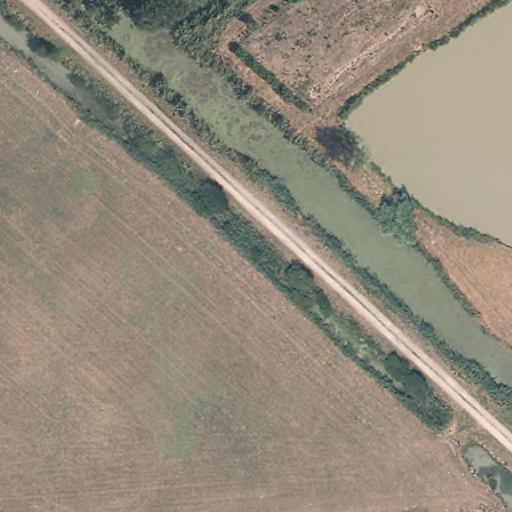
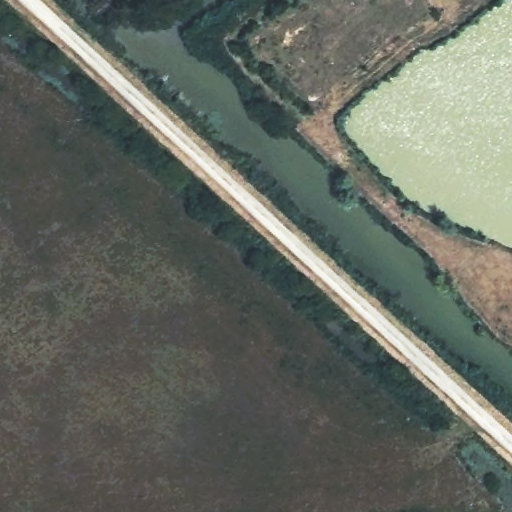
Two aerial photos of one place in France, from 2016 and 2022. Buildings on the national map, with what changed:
[]

